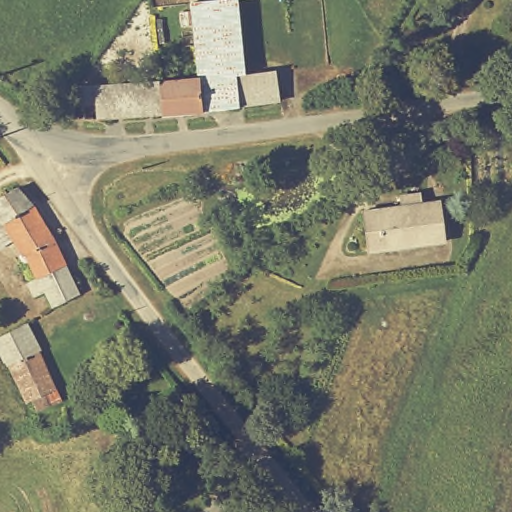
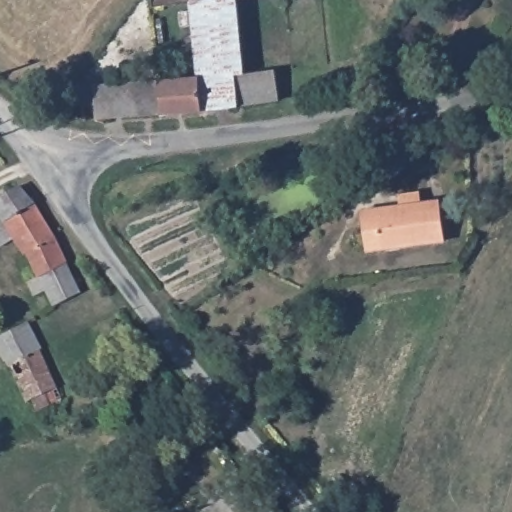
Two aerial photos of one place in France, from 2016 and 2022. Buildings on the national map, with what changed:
unchanged [(238,0),(246,74),(201,78),(197,78),(192,26),(181,27),(179,14),(191,13),(190,2),(210,0),(238,0)]
unchanged [(246,74),(281,71),(283,102),(204,109),(201,78),(246,74)]
unchanged [(197,78),(201,78),(204,109),(101,117),(100,104),(77,102),(77,87),(197,78)]
unchanged [(399,205),(398,194),(420,191),(421,202),(438,200),(443,241),(367,251),(363,210),(399,205)]
unchanged [(57,307),(47,312),(41,300),(51,295),(26,254),(10,263),(1,246),(15,237),(2,217),(31,203),(42,218),(62,246),(77,276),(91,307),(64,321),(57,307)]
unchanged [(44,343),(10,363),(0,346),(0,332),(30,317),(44,343)]
unchanged [(57,396),(40,404),(36,394),(28,397),(10,363),(44,343),(62,380),(67,391),(57,396)]

